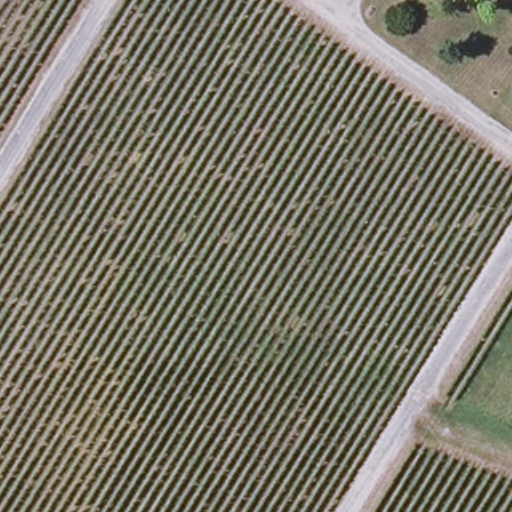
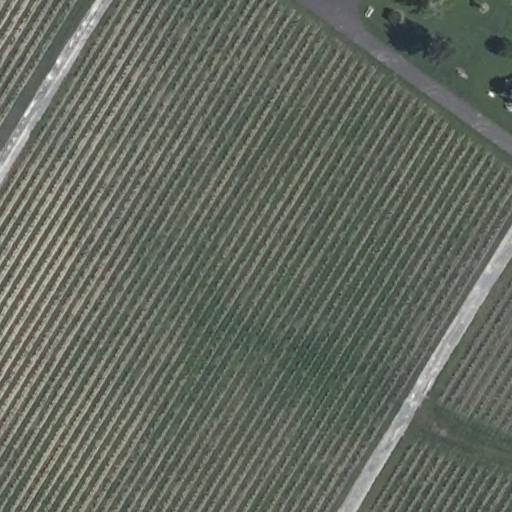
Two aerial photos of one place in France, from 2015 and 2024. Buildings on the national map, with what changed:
[]

